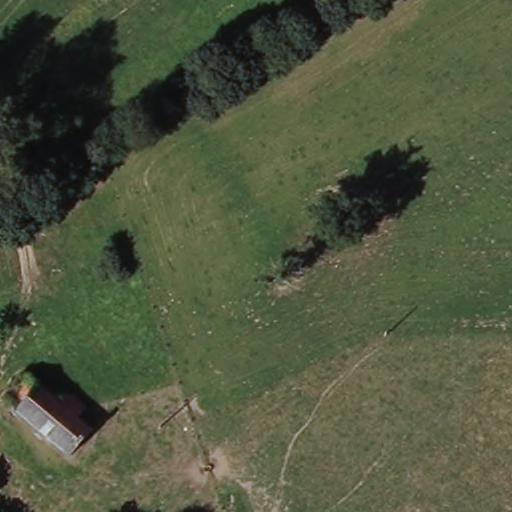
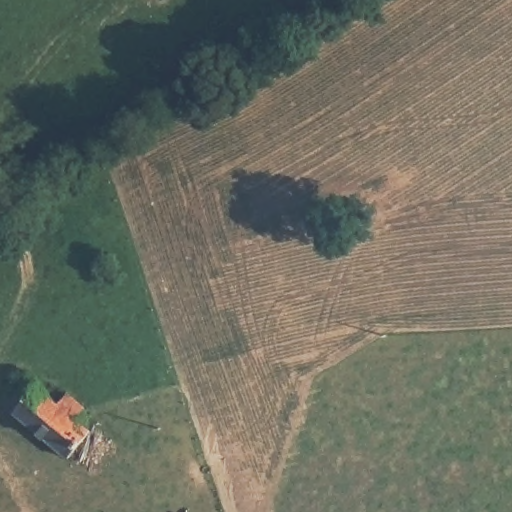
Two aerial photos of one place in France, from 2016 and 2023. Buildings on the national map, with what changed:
unchanged [(27,371),(63,402),(72,392),(89,408),(82,417),(95,430),(73,457),(2,397),(27,371)]

